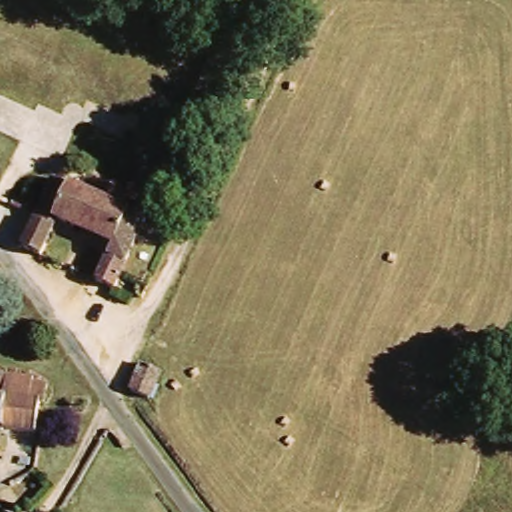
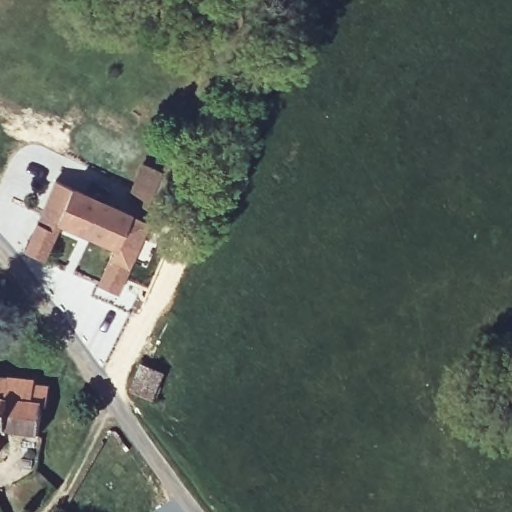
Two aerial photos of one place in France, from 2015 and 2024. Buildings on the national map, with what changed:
unchanged [(139,161),(162,170),(145,218),(141,216),(145,207),(134,202),(130,211),(121,207),(139,161)]
unchanged [(55,177),(121,207),(130,211),(134,202),(145,207),(141,216),(145,218),(115,288),(97,280),(111,243),(58,217),(41,254),(24,246),(55,177)]
unchanged [(144,363),(164,371),(153,399),(133,390),(144,363)]
unchanged [(28,385),(44,388),(41,407),(37,406),(33,435),(0,428),(0,377),(28,379),(28,385)]

